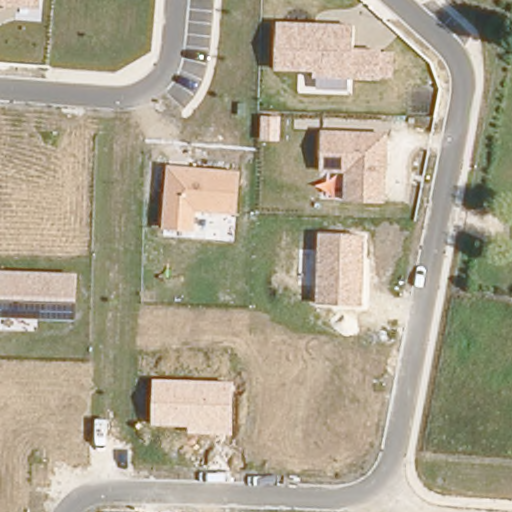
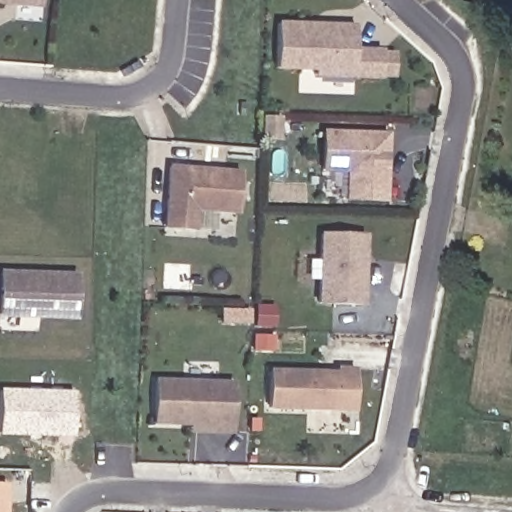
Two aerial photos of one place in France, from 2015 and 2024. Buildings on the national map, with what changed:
unchanged [(0,5),(0,0),(41,0),(41,8),(0,5)]
unchanged [(394,78),(381,78),(381,80),(314,79),(314,71),(274,70),(277,23),(354,25),(354,49),(382,49),(381,53),(395,53),(394,78)]
unchanged [(320,172),(321,131),(387,133),(385,202),(345,201),(345,173),(320,172)]
unchanged [(196,212),(195,232),(162,229),(167,167),(241,172),(237,214),(196,212)]
unchanged [(364,305),(316,304),(319,234),(366,235),(364,305)]
unchanged [(76,319),(0,317),(0,269),(76,271),(76,319)]
new [(353,414),(265,411),(267,369),(334,372),(334,367),(355,368),(353,414)]
unchanged [(153,426),(153,380),(234,382),(233,434),(188,434),(188,427),(153,426)]
new [(73,392),(71,437),(0,435),(0,389),(73,392)]
new [(8,484),(7,512),(0,512),(0,483),(8,484)]

